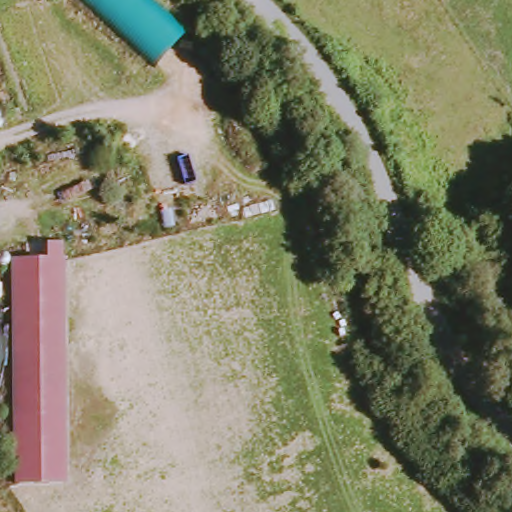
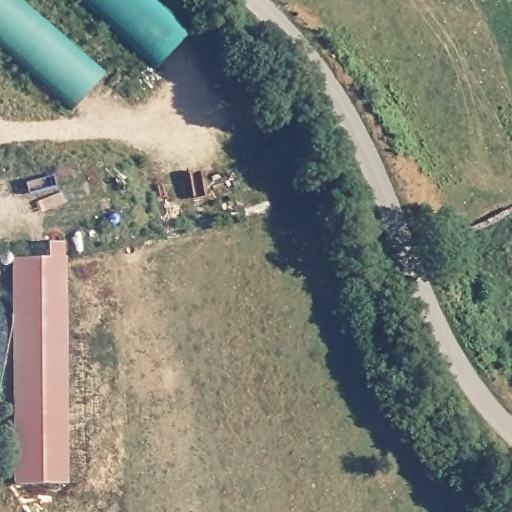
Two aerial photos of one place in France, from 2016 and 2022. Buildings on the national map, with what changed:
new [(16,0),(102,74),(74,109),(0,46),(0,0),(16,0)]
unchanged [(158,64),(82,0),(148,0),(185,33),(158,64)]
unchanged [(14,259),(41,262),(43,243),(46,243),(64,242),(63,336),(61,477),(61,487),(13,486),(13,484),(14,259)]

